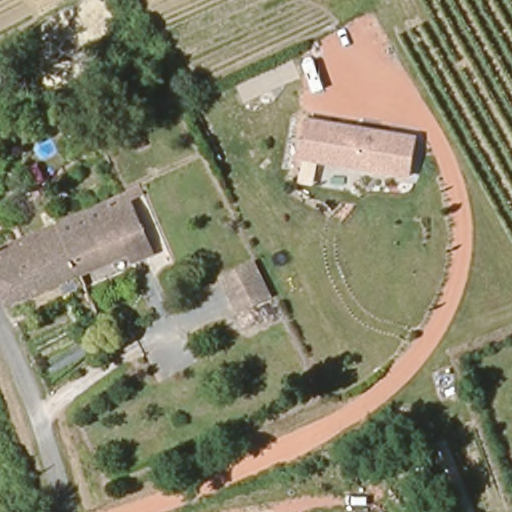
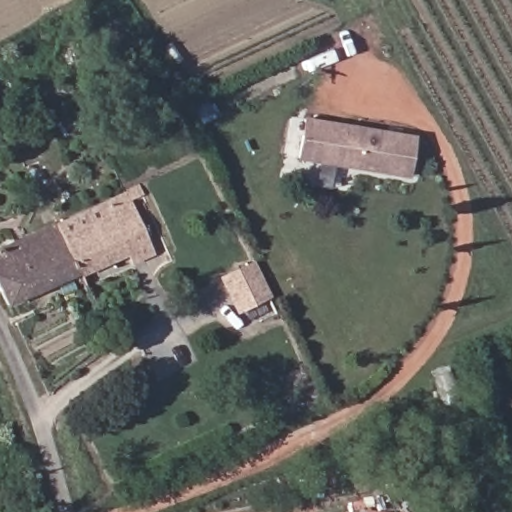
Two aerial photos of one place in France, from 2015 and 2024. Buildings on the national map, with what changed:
unchanged [(408,179),(296,161),(302,118),(415,136),(408,179)]
unchanged [(144,263),(141,257),(92,275),(69,225),(136,197),(156,238),(163,254),(144,263)]
unchanged [(92,275),(19,308),(0,266),(0,253),(69,225),(92,275)]
unchanged [(256,266),(271,298),(241,311),(226,280),(256,266)]
unchanged [(110,332),(100,336),(94,320),(103,316),(110,332)]
unchanged [(177,361),(181,373),(170,376),(166,364),(177,361)]

